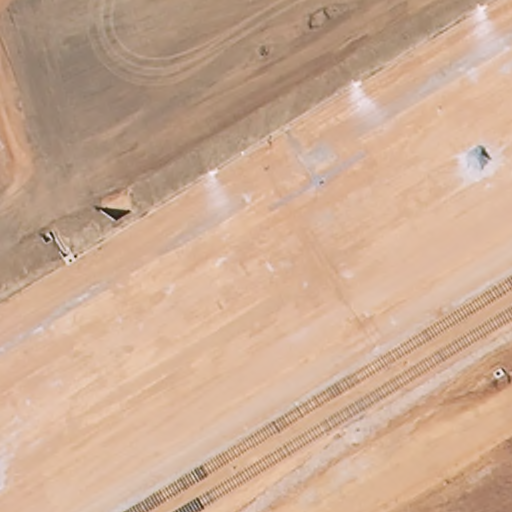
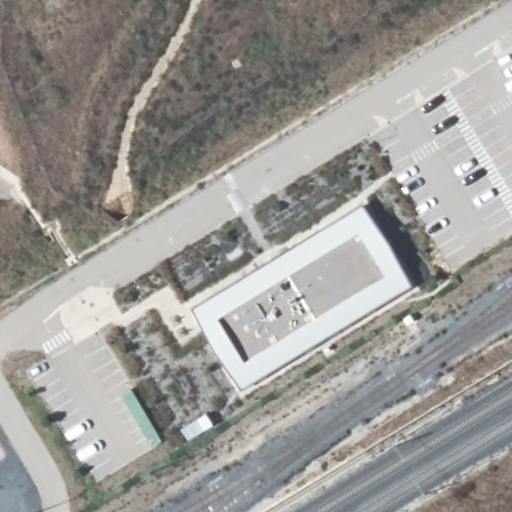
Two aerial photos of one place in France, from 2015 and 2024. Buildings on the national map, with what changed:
new [(415,283),(239,391),(190,311),(361,206),(415,283)]

